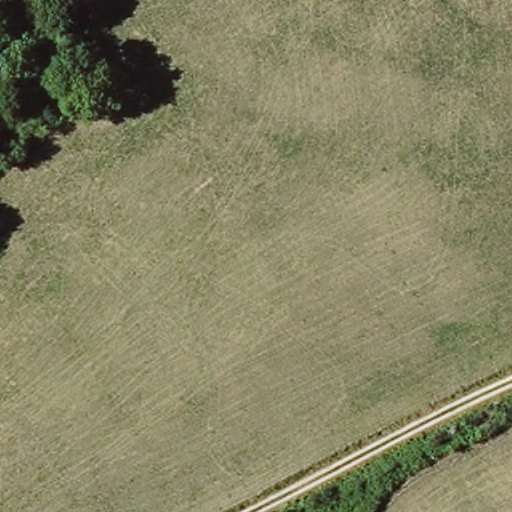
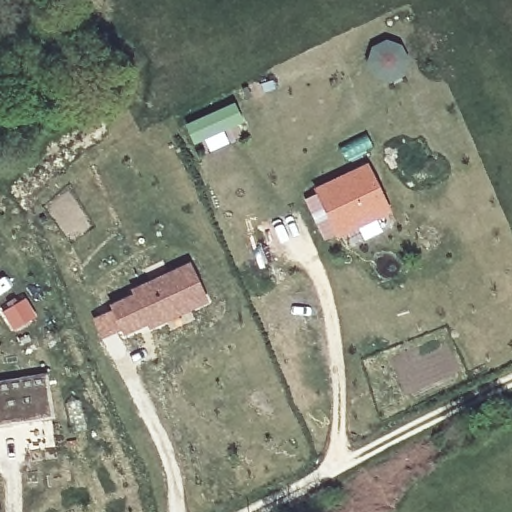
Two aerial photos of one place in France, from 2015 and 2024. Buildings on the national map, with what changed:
new [(366,167),(388,213),(338,236),(316,191),(366,167)]
new [(110,309),(108,304),(131,293),(129,289),(191,261),(210,302),(147,330),(146,327),(122,336),(120,331),(101,339),(91,318),(110,309)]
new [(25,297),(37,315),(14,330),(2,311),(25,297)]
new [(47,378),(53,417),(0,426),(0,386),(47,378)]

